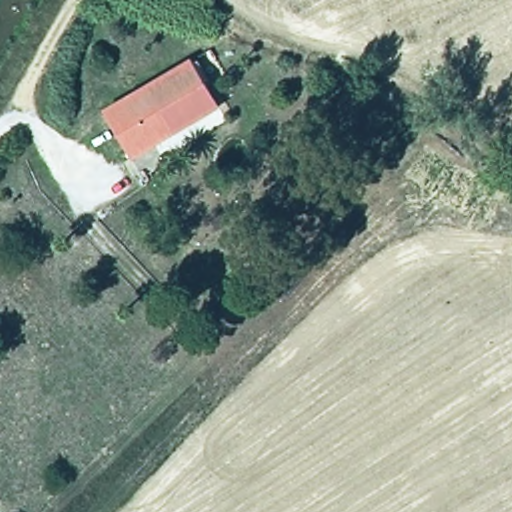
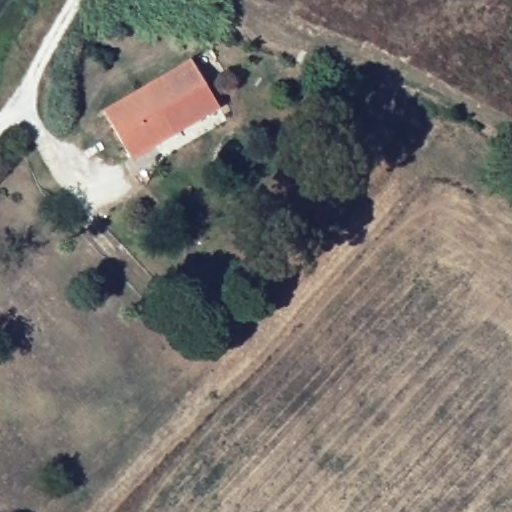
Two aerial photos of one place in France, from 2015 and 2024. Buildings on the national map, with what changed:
unchanged [(127,165),(95,115),(182,61),(213,106),(127,165)]

